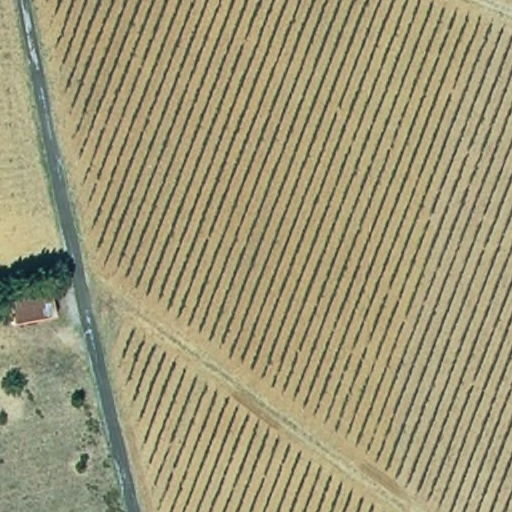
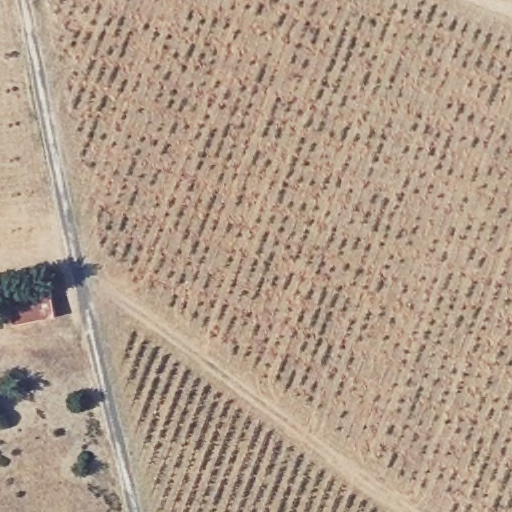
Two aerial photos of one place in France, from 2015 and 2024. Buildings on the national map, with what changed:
unchanged [(2,303),(35,298),(37,309),(49,307),(52,322),(8,331),(2,303)]

